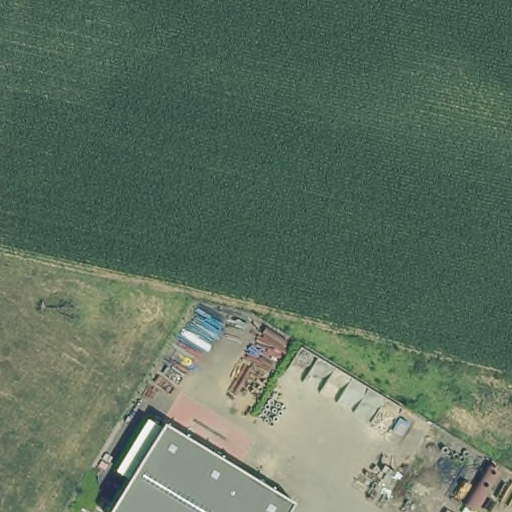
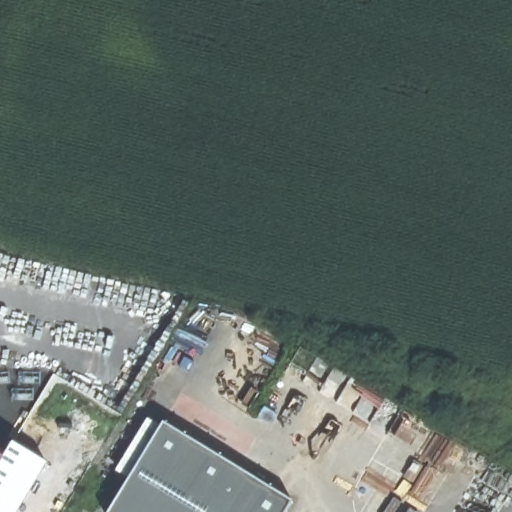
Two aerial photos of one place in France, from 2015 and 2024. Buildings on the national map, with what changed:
unchanged [(109,512),(164,422),(293,501),(287,512),(109,512)]
new [(11,439),(47,461),(16,512),(0,512),(0,457),(2,453),(11,439)]
new [(0,457),(0,452),(2,453),(0,457)]

